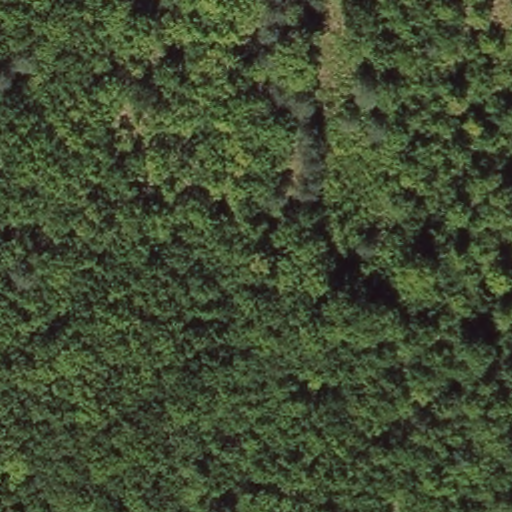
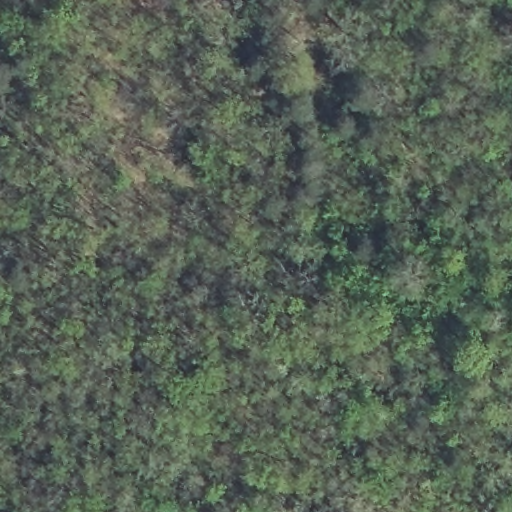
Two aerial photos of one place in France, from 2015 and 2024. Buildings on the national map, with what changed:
[]

